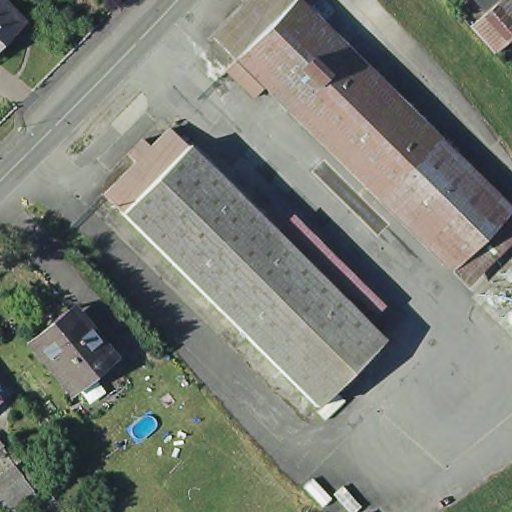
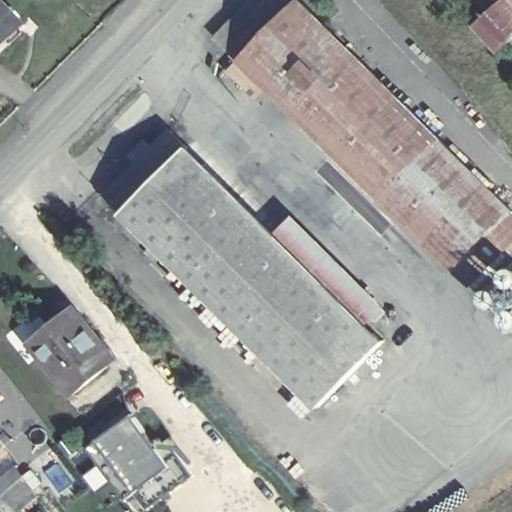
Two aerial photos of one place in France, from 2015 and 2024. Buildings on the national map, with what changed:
unchanged [(0,43),(0,0),(4,0),(23,20),(0,43)]
unchanged [(215,53),(225,44),(204,22),(226,0),(320,0),(311,9),(499,194),(440,254),(252,70),(242,80),(227,65),(215,53)]
unchanged [(491,1),(490,0),(512,0),(512,35),(499,43),(497,41),(475,16),(491,1)]
unchanged [(133,161),(125,152),(140,137),(148,145),(167,126),(185,144),(122,212),(102,193),(133,161)]
unchanged [(185,144),(381,335),(317,402),(122,212),(185,144)]
unchanged [(512,207),(512,214),(456,270),(440,254),(499,194),(512,207)]
unchanged [(512,257),(512,334),(473,297),(512,257)]
unchanged [(32,343),(75,307),(118,358),(75,394),(32,343)]
unchanged [(0,399),(0,397),(1,398),(0,399)]
new [(135,412),(158,444),(167,437),(171,443),(178,439),(185,448),(181,455),(199,478),(152,511),(140,496),(129,504),(88,448),(135,412)]
unchanged [(0,445),(0,433),(5,440),(0,445)]
unchanged [(0,482),(18,467),(40,497),(21,512),(9,512),(0,501),(0,482)]

